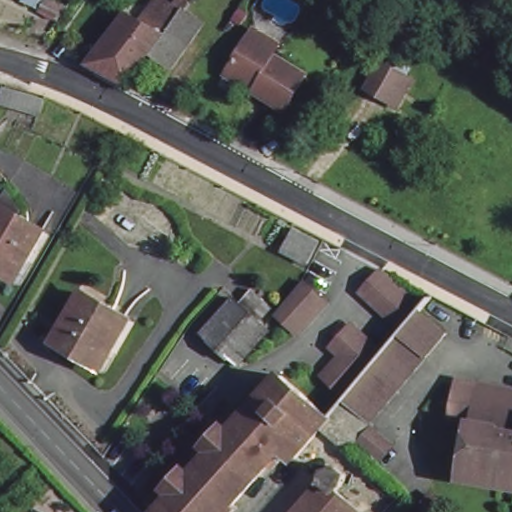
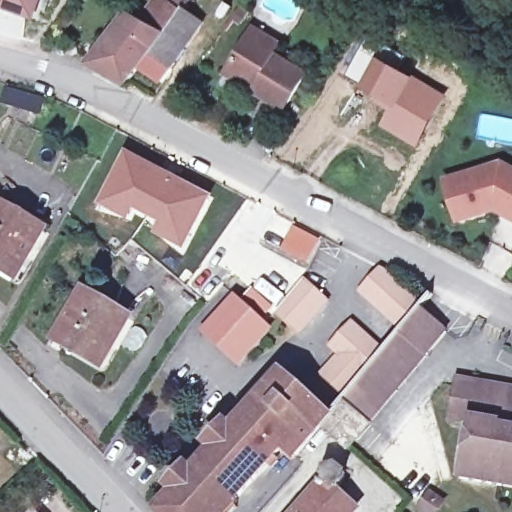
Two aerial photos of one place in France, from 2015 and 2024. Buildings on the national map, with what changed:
new [(35,20),(0,9),(0,0),(42,0),(35,20)]
demolished [(66,9),(54,29),(43,24),(43,14),(19,5),(22,0),(45,0),(66,9)]
unchanged [(111,85),(94,75),(85,70),(122,21),(129,12),(166,31),(168,29),(176,19),(193,32),(176,55),(164,71),(146,59),(126,85),(121,91),(111,85)]
unchanged [(254,40),(273,54),(266,62),(304,90),(283,120),(227,79),(254,40)]
unchanged [(398,110),(368,90),(386,65),(389,68),(396,58),(412,68),(405,79),(415,86),(398,110)]
unchanged [(7,92),(44,105),(38,120),(1,108),(7,92)]
new [(125,151),(213,197),(183,253),(155,239),(158,227),(134,214),(127,223),(97,209),(125,151)]
new [(442,179),(502,160),(512,165),(512,223),(494,213),(455,224),(442,179)]
unchanged [(40,235),(13,280),(0,272),(0,211),(40,235)]
unchanged [(301,226),(324,238),(313,260),(289,247),(301,226)]
unchanged [(400,332),(359,295),(378,273),(419,311),(416,315),(400,332)]
unchanged [(333,298),(331,300),(304,328),(283,308),(310,277),(333,298)]
unchanged [(276,324),(243,360),(208,329),(241,292),(246,296),(258,283),(279,303),(267,315),(272,320),(276,324)]
unchanged [(79,299),(122,325),(97,370),(53,345),(79,299)]
unchanged [(443,339),(364,423),(363,422),(355,415),(338,400),(378,355),(382,350),(398,335),(400,332),(416,315),(443,339)]
unchanged [(317,378),(335,357),(326,349),(346,325),(378,355),(338,400),(317,378)]
unchanged [(182,478),(207,450),(202,445),(219,426),(224,431),(275,377),(321,418),(316,423),(287,456),(278,448),(218,512),(150,512),(166,495),(161,490),(176,472),(182,478)]
unchanged [(466,428),(446,423),(452,389),(452,383),(489,390),(512,394),(512,492),(457,481),(466,428)]
unchanged [(340,446),(316,423),(321,418),(336,401),(338,400),(355,415),(363,422),(340,446)]
unchanged [(387,448),(376,460),(352,440),(364,427),(387,448)]
unchanged [(320,484),(327,470),(334,468),(337,470),(341,472),(343,474),(344,475),(345,477),(346,481),(346,483),(341,490),(353,501),(357,497),(365,505),(361,509),(358,512),(303,512),(324,488),(320,484)]
unchanged [(447,498),(436,512),(430,512),(422,506),(435,490),(447,498)]

